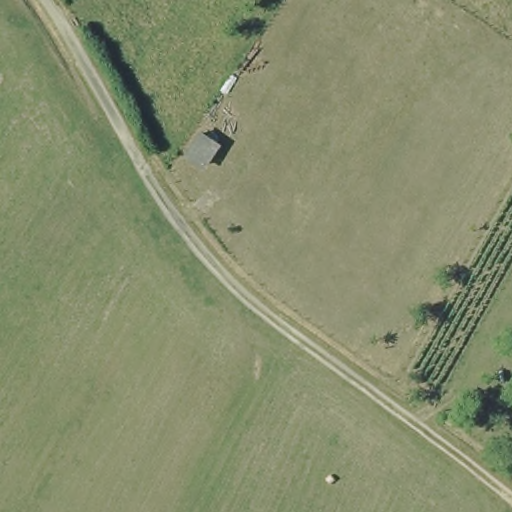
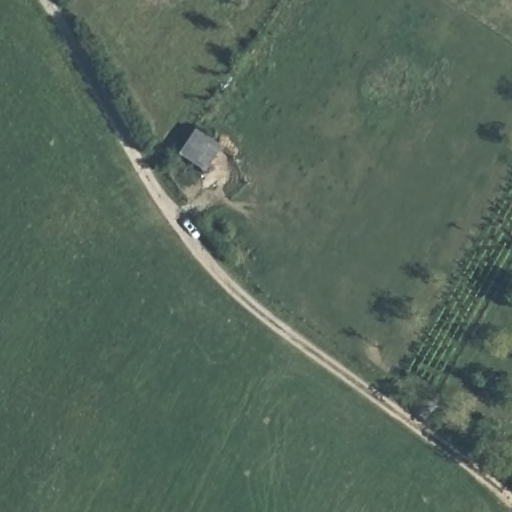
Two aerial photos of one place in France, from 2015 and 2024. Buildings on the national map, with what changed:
unchanged [(195,127),(217,143),(202,168),(179,153),(195,127)]

